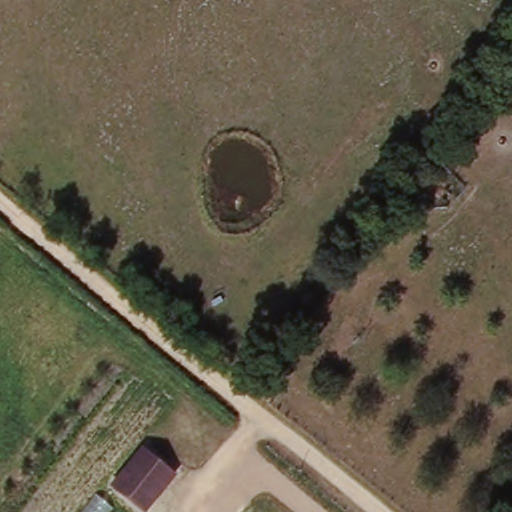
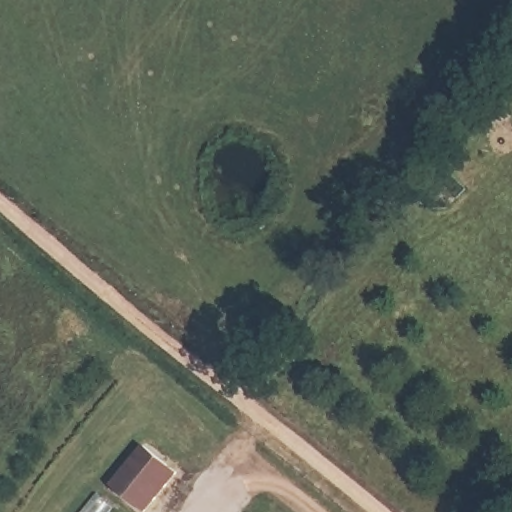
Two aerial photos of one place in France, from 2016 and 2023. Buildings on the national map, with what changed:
unchanged [(178,470),(149,507),(116,482),(148,442),(178,470)]

